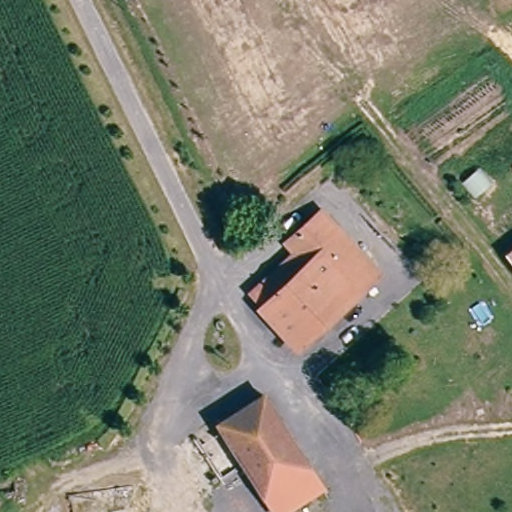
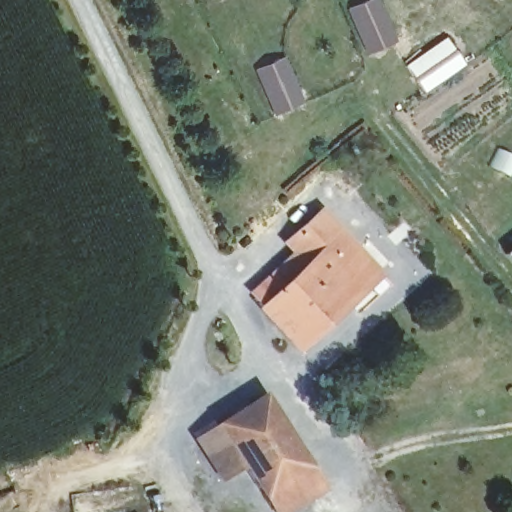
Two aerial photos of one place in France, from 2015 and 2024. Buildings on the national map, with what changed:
new [(368,0),(379,0),(397,41),(367,55),(347,9),(368,0)]
new [(426,92),(406,65),(447,36),(466,63),(426,92)]
new [(256,70),(285,57),(305,103),(275,115),(256,70)]
unchanged [(384,276),(298,352),(244,292),(288,253),(280,243),(325,211),(384,276)]
unchanged [(512,260),(507,254),(512,250),(512,260)]
unchanged [(206,442),(224,432),(221,424),(270,397),(312,472),(265,497),(240,457),(220,467),(206,442)]
unchanged [(312,472),(323,490),(284,512),(274,512),(265,497),(312,472)]
unchanged [(139,507),(140,512),(111,512),(111,508),(139,507)]

